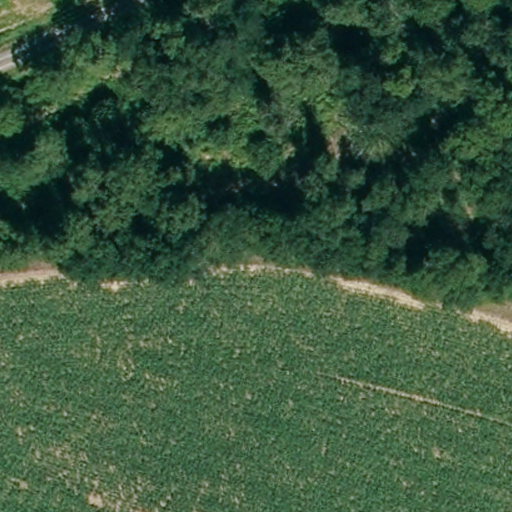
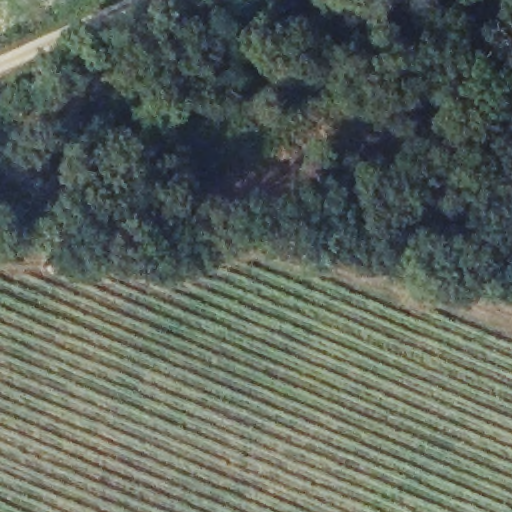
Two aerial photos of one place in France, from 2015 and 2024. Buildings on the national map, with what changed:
[]

